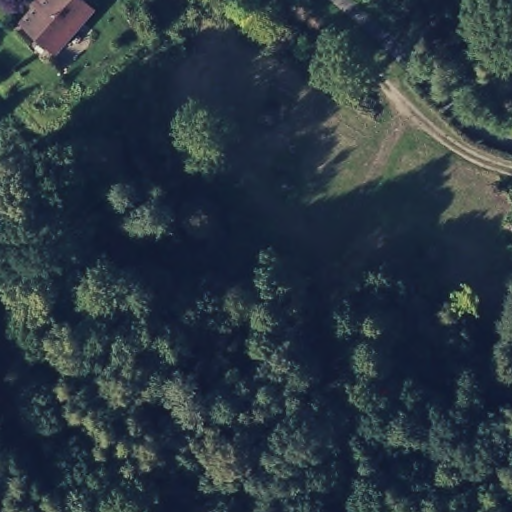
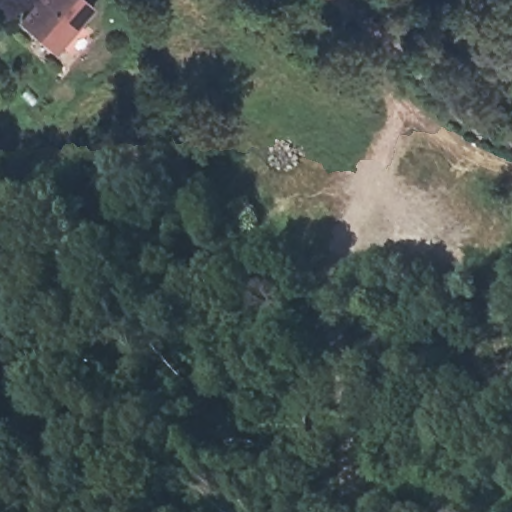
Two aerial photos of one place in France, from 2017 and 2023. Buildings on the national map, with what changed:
unchanged [(63,48),(14,5),(18,0),(102,0),(63,48)]

